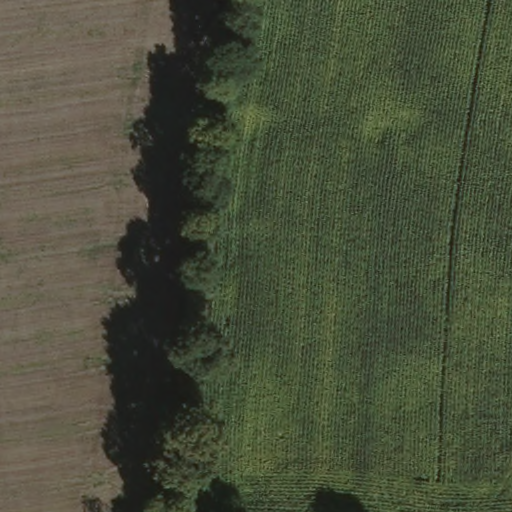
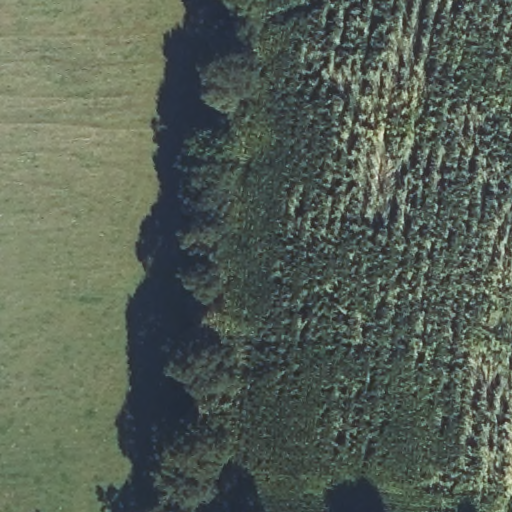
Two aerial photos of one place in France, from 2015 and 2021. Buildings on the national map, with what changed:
[]

